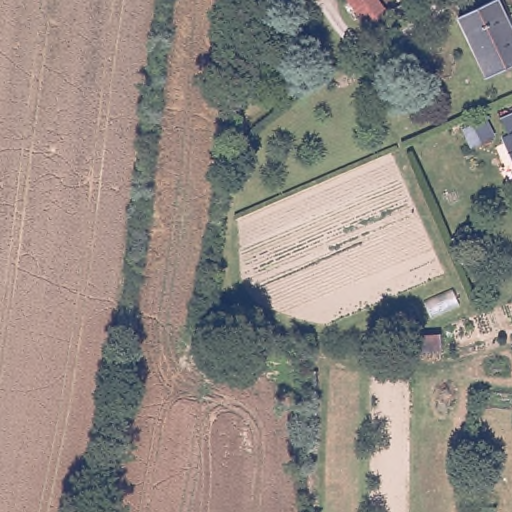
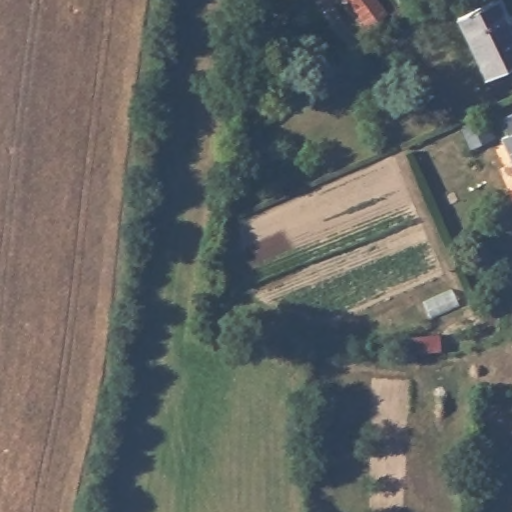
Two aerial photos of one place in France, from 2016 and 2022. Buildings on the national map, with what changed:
unchanged [(376,0),(393,23),(374,36),(347,0),(376,0)]
unchanged [(493,0),(496,0),(512,33),(512,65),(486,78),(458,17),(493,0)]
unchanged [(502,136),(495,119),(512,111),(512,160),(502,136)]
unchanged [(481,121),(488,139),(471,146),(463,128),(481,121)]

